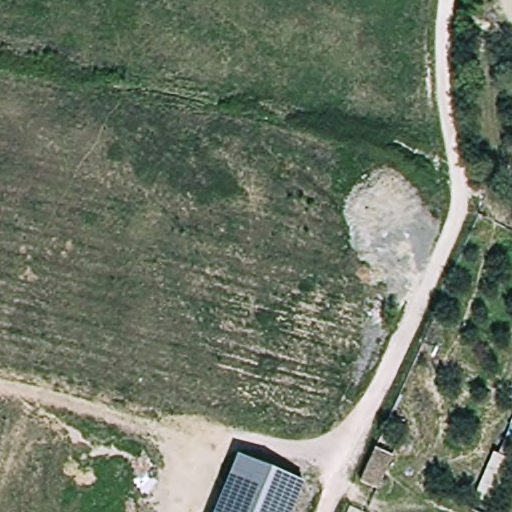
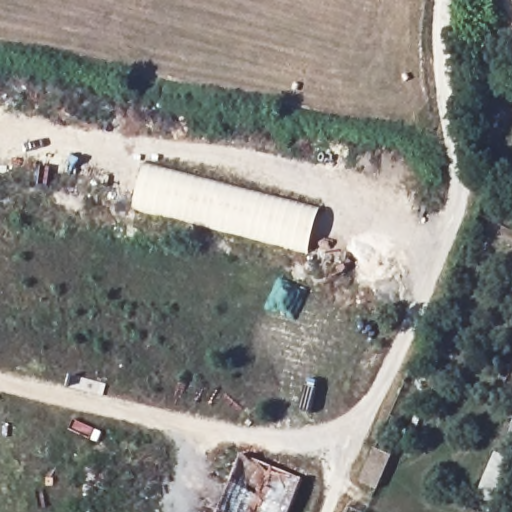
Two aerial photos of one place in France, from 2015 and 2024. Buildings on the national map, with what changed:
new [(136,207),(147,163),(321,208),(309,253),(136,207)]
unchanged [(383,452),(399,459),(384,492),(368,485),(383,452)]
unchanged [(495,453),(512,459),(512,472),(494,511),(476,502),(495,453)]
unchanged [(297,512),(220,512),(244,457),(309,485),(297,512)]

